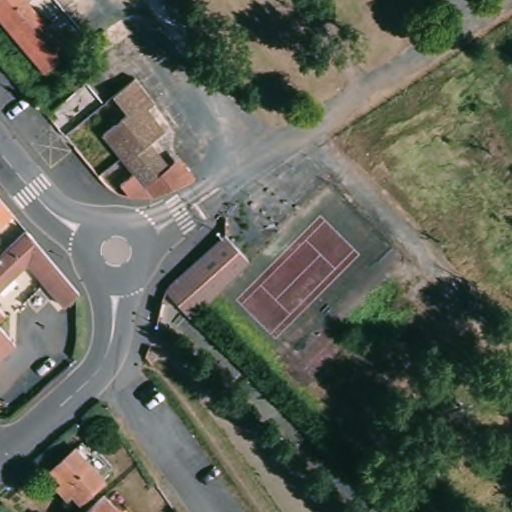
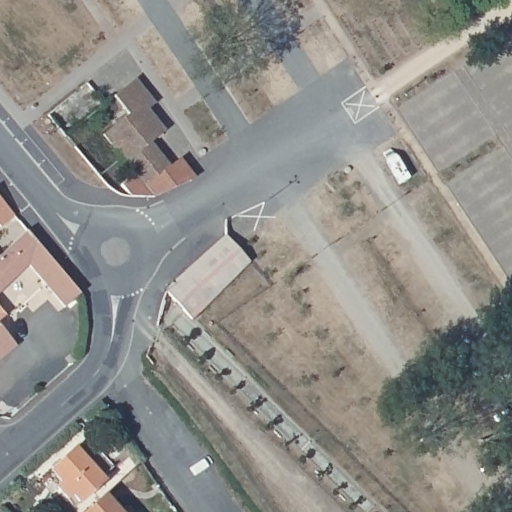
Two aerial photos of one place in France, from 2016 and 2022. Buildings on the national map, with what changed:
unchanged [(41,67),(0,22),(0,0),(34,0),(71,43),(41,67)]
unchanged [(156,99),(149,106),(165,129),(154,138),(167,160),(179,154),(189,167),(138,199),(122,183),(134,175),(104,134),(121,116),(108,97),(137,74),(156,99)]
unchanged [(15,210),(2,221),(0,219),(0,193),(15,210)]
unchanged [(81,290),(66,303),(27,260),(0,284),(0,252),(29,227),(81,290)]
unchanged [(188,318),(161,290),(221,230),(249,257),(188,318)]
unchanged [(5,309),(3,311),(0,313),(0,304),(5,309)]
unchanged [(17,339),(0,354),(0,320),(17,339)]
unchanged [(50,468),(68,452),(74,447),(86,461),(101,479),(72,505),(56,487),(61,482),(50,468)]
unchanged [(97,491),(113,508),(120,502),(129,512),(73,512),(97,491)]

